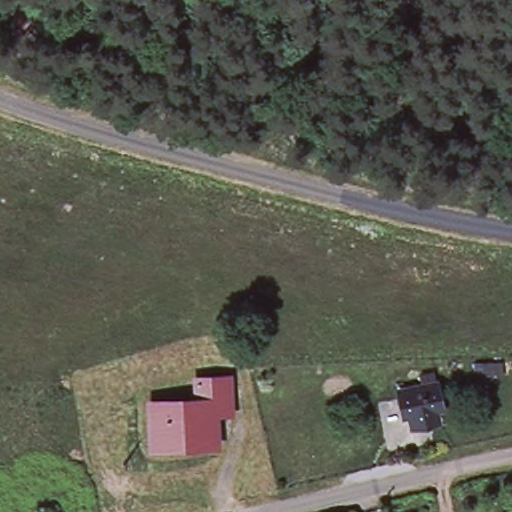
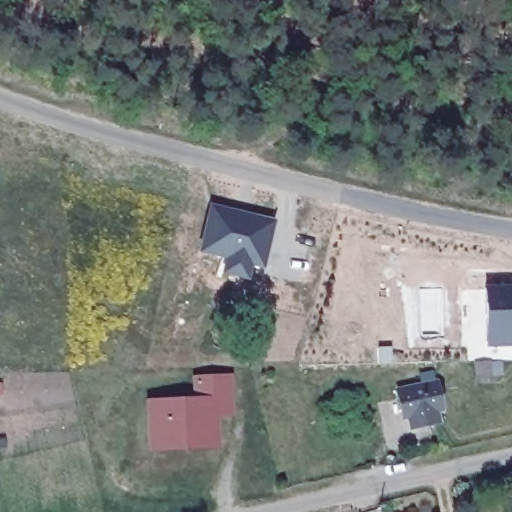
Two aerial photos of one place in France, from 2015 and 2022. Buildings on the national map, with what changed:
new [(277,219),(267,270),(255,267),(252,280),(224,275),(228,259),(202,252),(212,203),(277,219)]
new [(512,290),(512,345),(488,345),(489,290),(512,290)]
unchanged [(433,385),(437,404),(430,405),(432,417),(408,422),(407,410),(400,411),(397,392),(433,385)]
unchanged [(148,411),(190,409),(190,388),(220,387),(222,416),(208,416),(210,449),(180,450),(180,447),(150,448),(148,411)]

